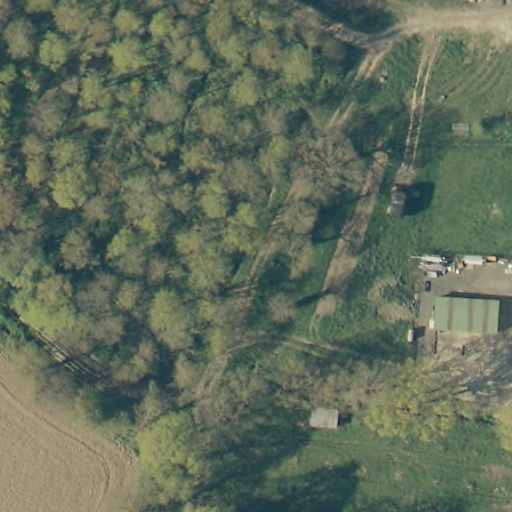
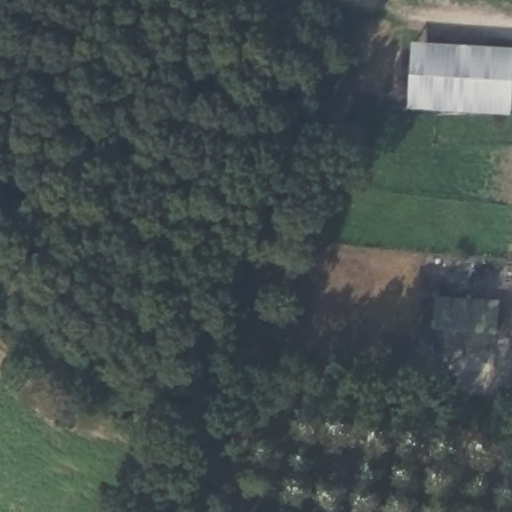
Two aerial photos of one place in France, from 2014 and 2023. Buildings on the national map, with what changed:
new [(412,42),(512,49),(512,115),(408,109),(412,42)]
unchanged [(441,332),(442,309),(443,300),(504,303),(503,312),(502,335),(441,332)]

